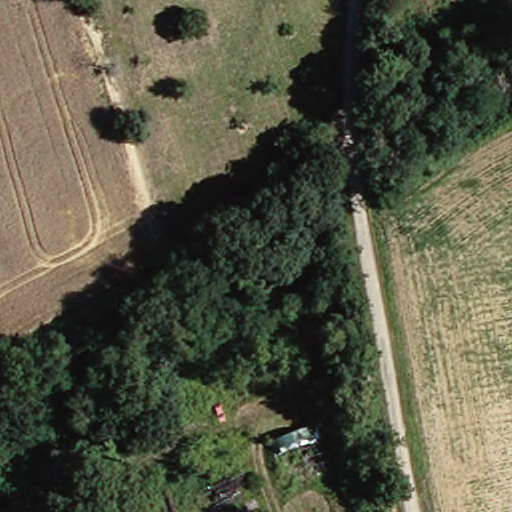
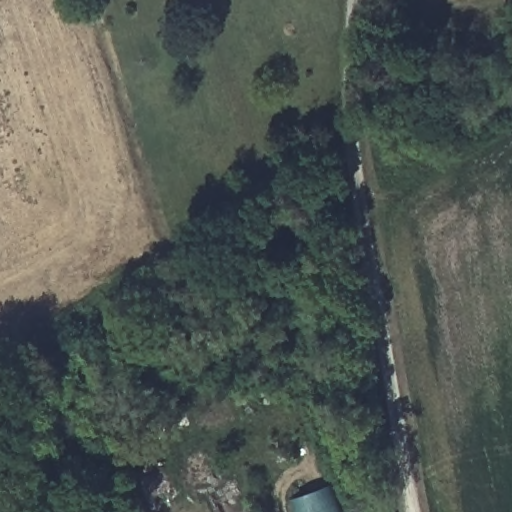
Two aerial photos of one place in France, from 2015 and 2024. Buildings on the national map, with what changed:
new [(293,500),(330,485),(340,512),(298,512),(293,500)]

